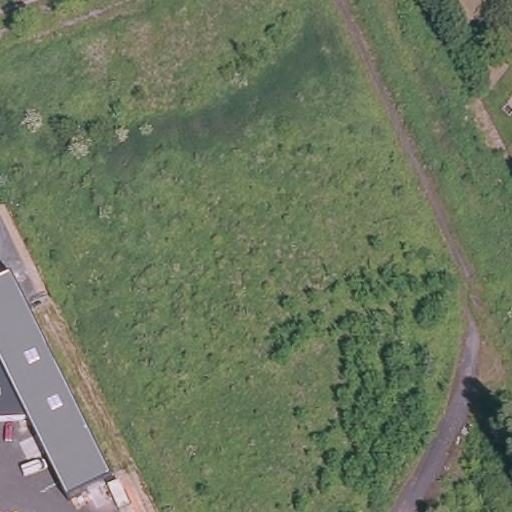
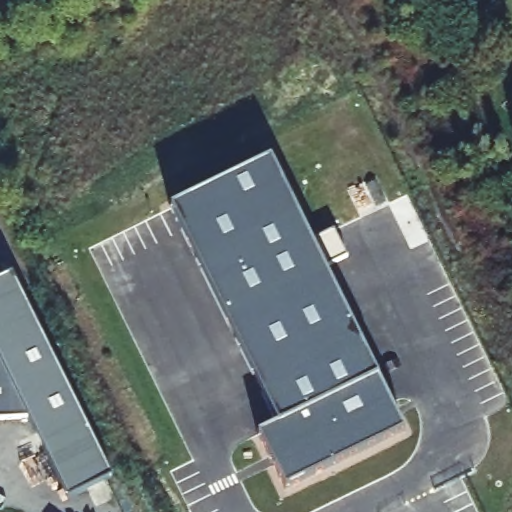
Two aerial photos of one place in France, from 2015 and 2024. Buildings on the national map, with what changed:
new [(259,436),(279,426),(172,209),(271,160),(379,381),(404,433),(286,490),(259,436)]
unchanged [(29,416),(0,417),(0,283),(13,277),(111,477),(69,499),(29,416)]

